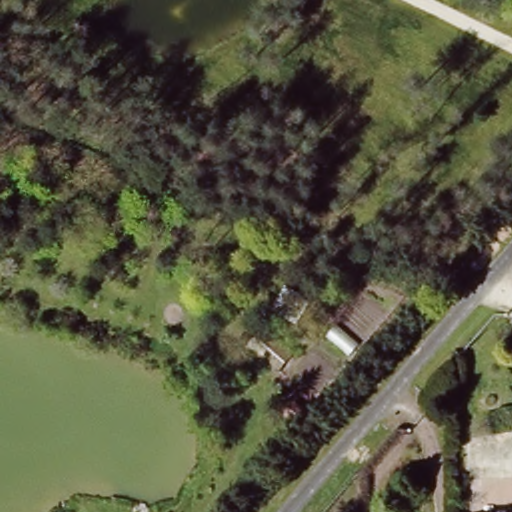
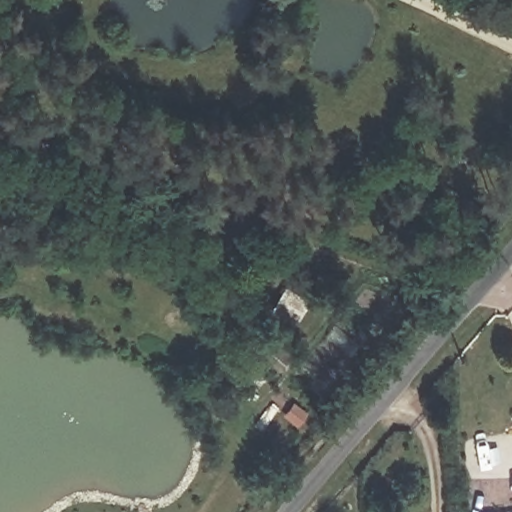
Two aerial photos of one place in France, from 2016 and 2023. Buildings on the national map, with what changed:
unchanged [(265,325),(295,355),(276,377),(245,349),(265,325)]

